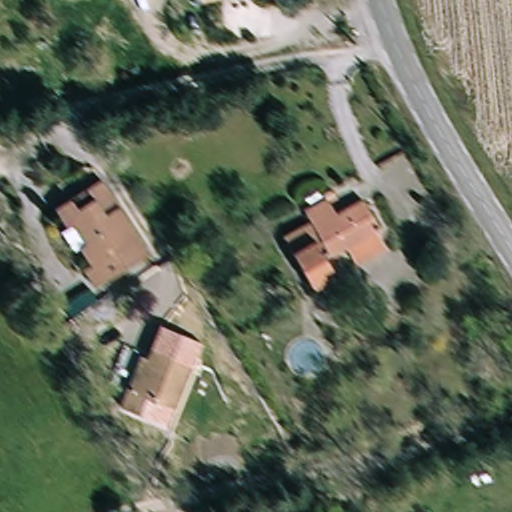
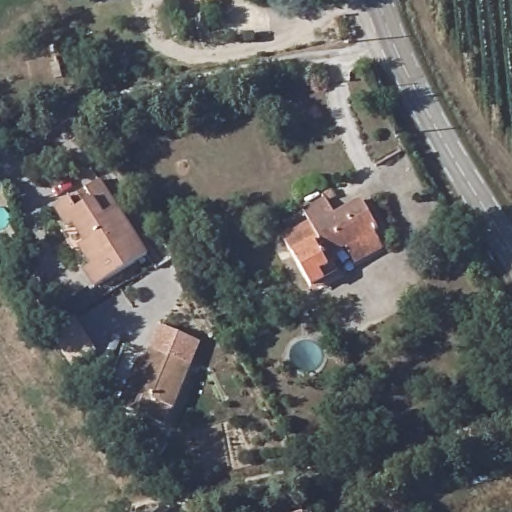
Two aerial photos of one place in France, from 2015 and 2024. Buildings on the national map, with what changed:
unchanged [(142,254),(88,288),(78,273),(86,267),(53,210),(96,182),(142,254)]
unchanged [(341,245),(324,254),(331,270),(305,282),(279,234),(301,222),(296,212),(323,197),(331,215),(363,200),(375,227),(367,231),(341,244),(341,245)]
unchanged [(349,260),(341,245),(367,231),(375,247),(349,260)]
unchanged [(188,365),(173,411),(153,405),(148,426),(115,416),(121,392),(129,395),(142,352),(188,365)]

